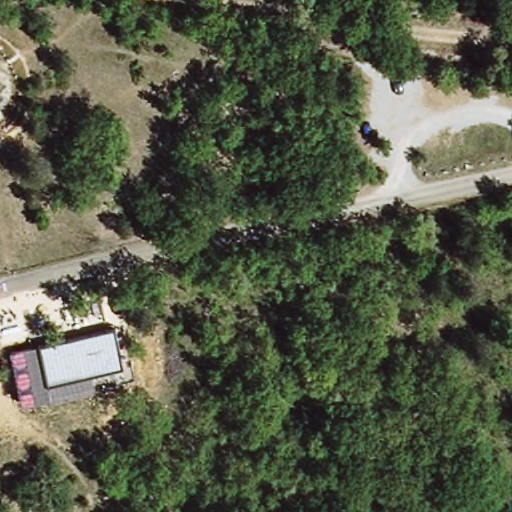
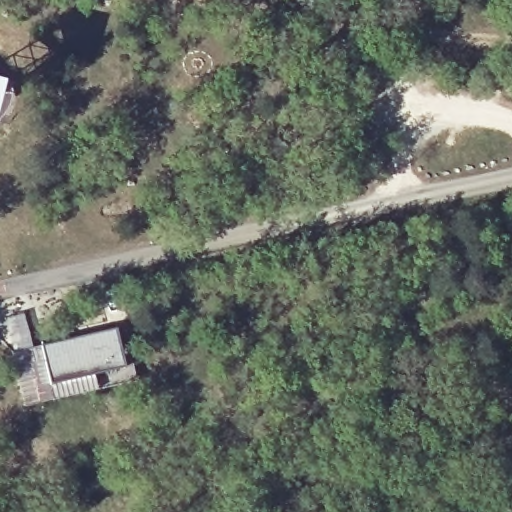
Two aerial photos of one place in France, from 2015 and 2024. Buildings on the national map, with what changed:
unchanged [(12,352),(117,328),(119,341),(128,339),(136,378),(23,404),(12,352)]

